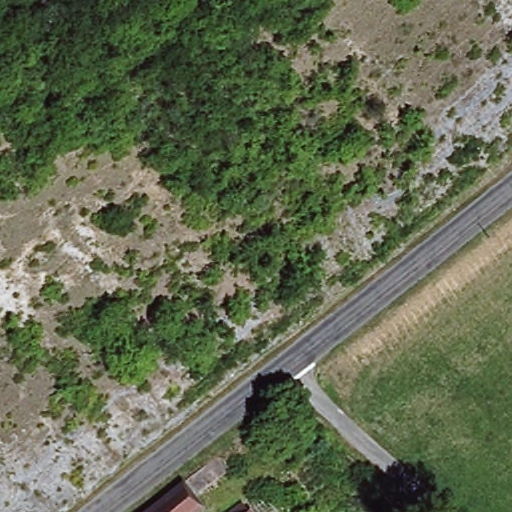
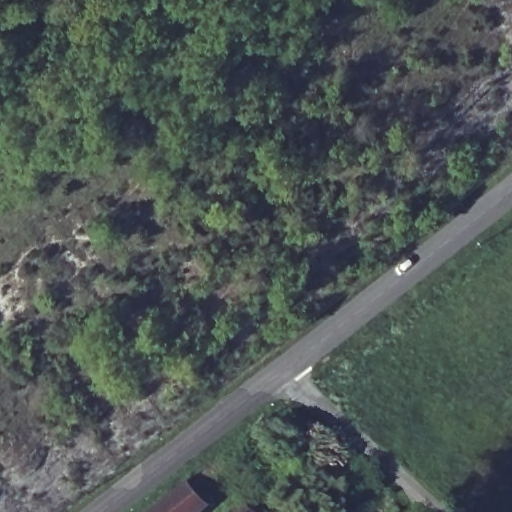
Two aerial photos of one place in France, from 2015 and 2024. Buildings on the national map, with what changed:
unchanged [(236,471),(195,502),(204,512),(142,512),(152,504),(221,452),(236,471)]
unchanged [(275,512),(253,512),(268,502),(275,512)]
unchanged [(241,512),(237,512),(240,510),(241,512)]

